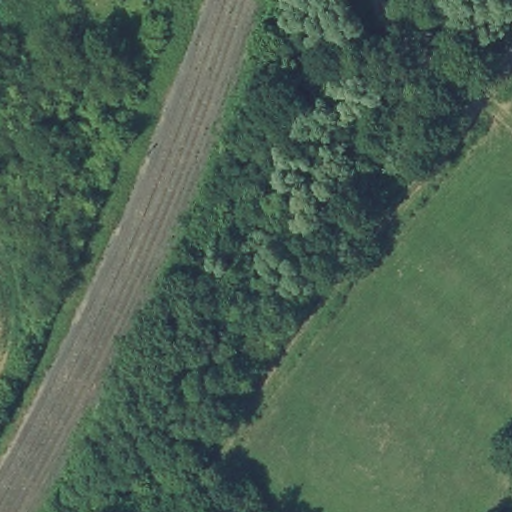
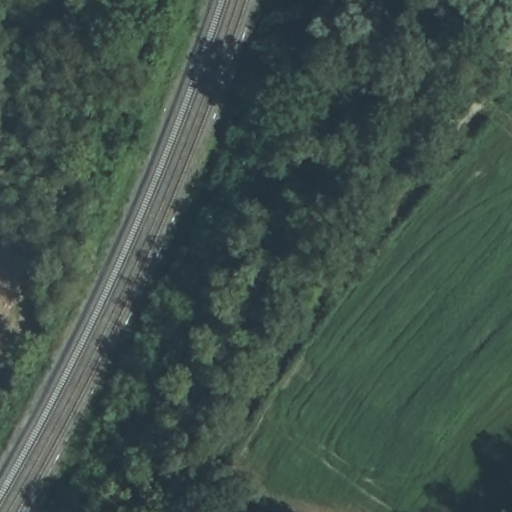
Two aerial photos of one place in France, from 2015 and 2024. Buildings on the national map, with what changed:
unchanged [(223,512),(227,507),(233,512),(223,512)]

